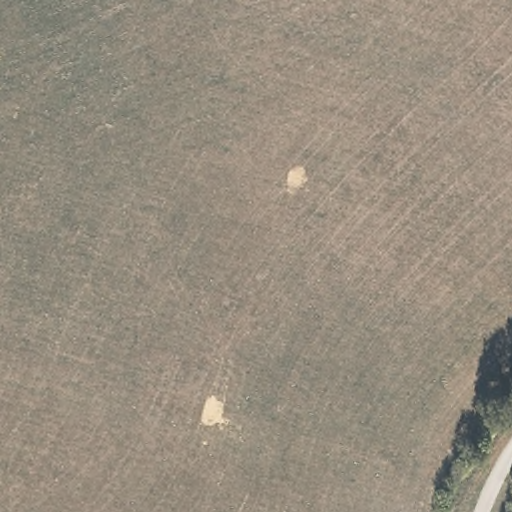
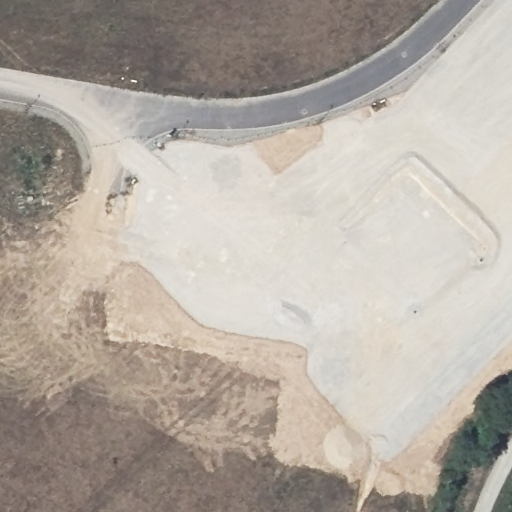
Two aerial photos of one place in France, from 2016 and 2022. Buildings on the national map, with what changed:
[]

